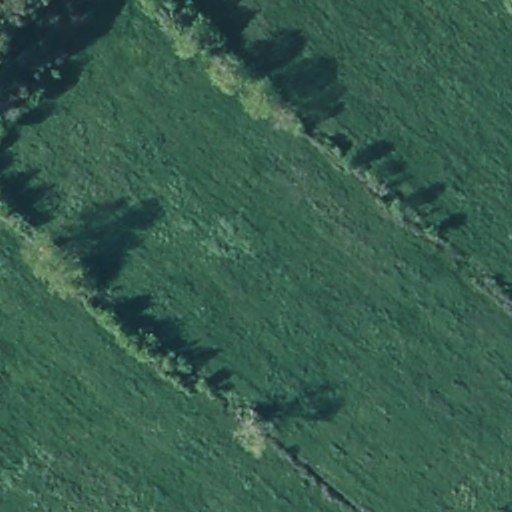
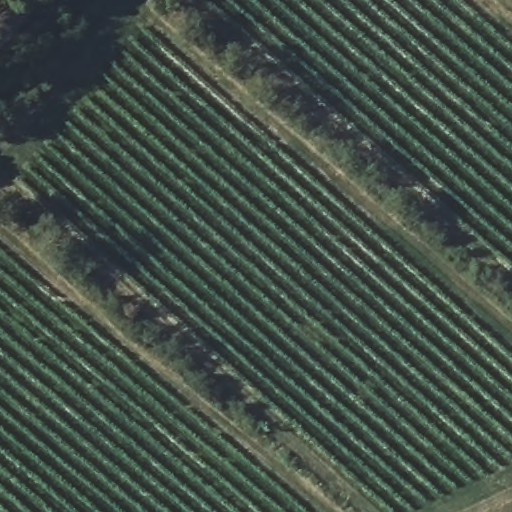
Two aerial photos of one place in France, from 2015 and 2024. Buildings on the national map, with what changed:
[]

